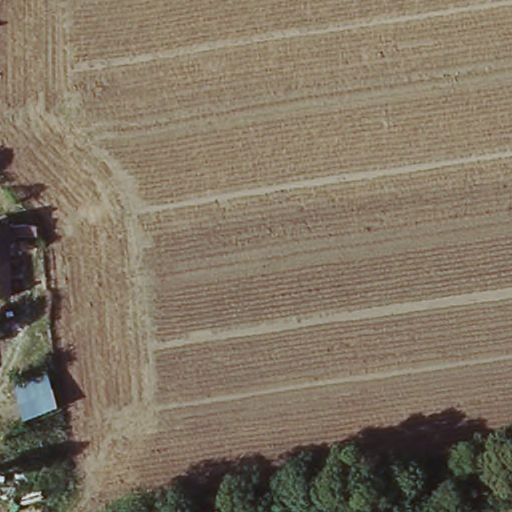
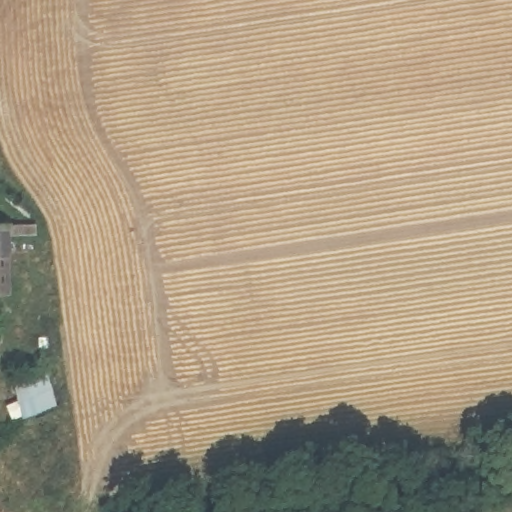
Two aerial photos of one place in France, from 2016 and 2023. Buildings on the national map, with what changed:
unchanged [(3,244),(7,304),(0,304),(0,222),(32,222),(34,245),(3,244)]
unchanged [(43,368),(52,406),(18,416),(8,377),(43,368)]

